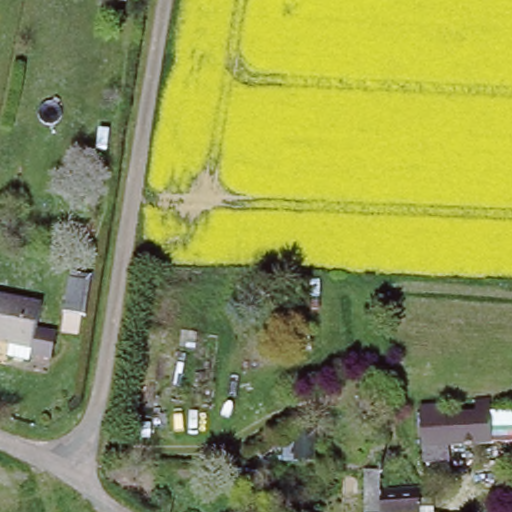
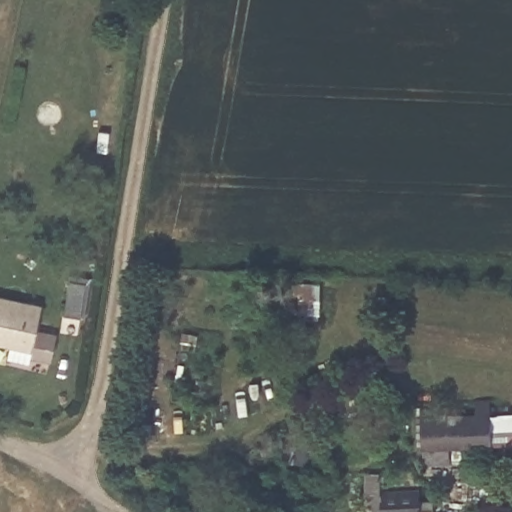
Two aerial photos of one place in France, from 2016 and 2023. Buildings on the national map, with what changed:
unchanged [(75,278),(89,281),(82,313),(67,310),(75,278)]
unchanged [(0,295),(44,305),(38,330),(58,333),(53,358),(33,354),(32,358),(11,353),(14,342),(0,340),(0,295)]
unchanged [(480,413),(481,417),(512,416),(512,448),(432,450),(431,416),(480,413)]
unchanged [(362,473),(377,474),(378,494),(362,495),(362,473)]
unchanged [(432,512),(378,512),(378,494),(415,493),(432,493),(432,512)]

